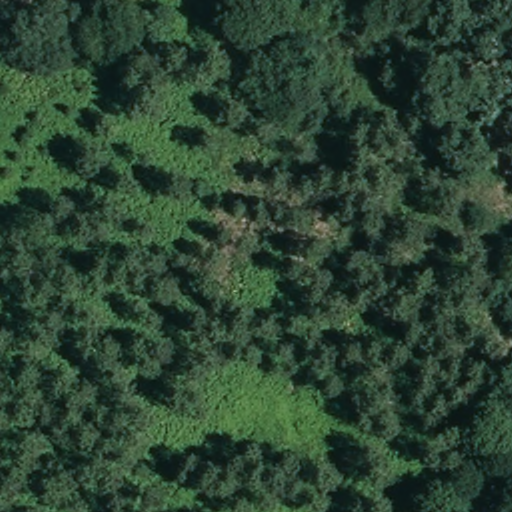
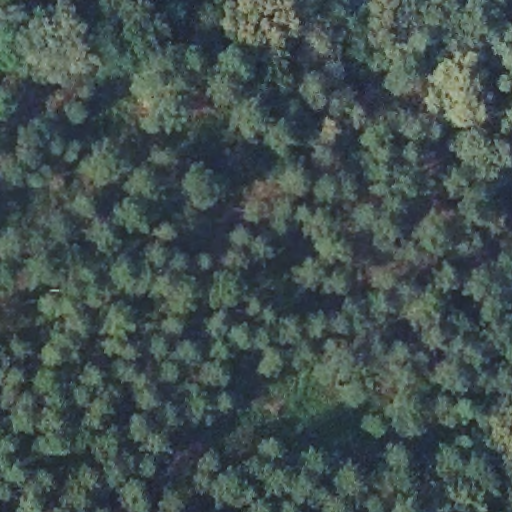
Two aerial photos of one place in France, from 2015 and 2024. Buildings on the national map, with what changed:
unchanged [(452,102),(441,83),(456,75),(466,94),(452,102)]

